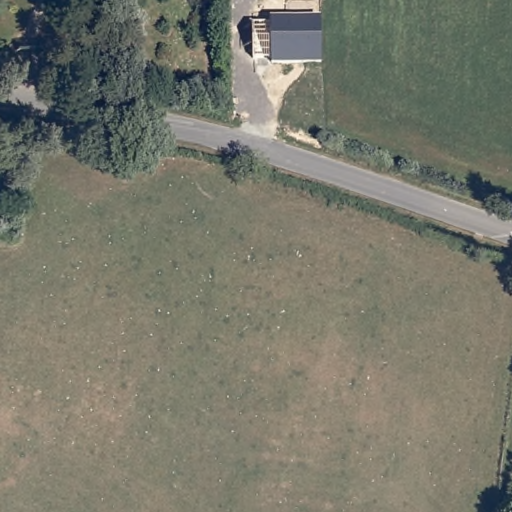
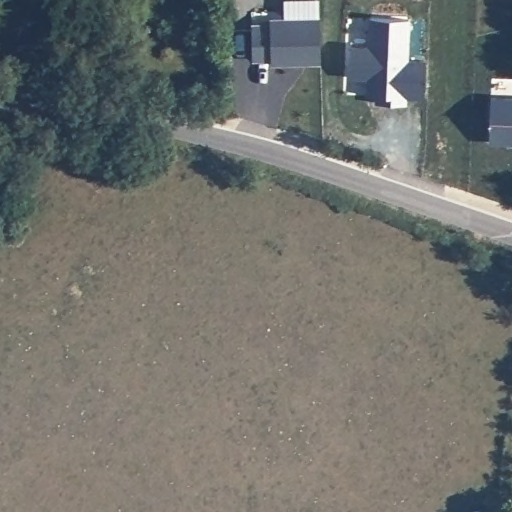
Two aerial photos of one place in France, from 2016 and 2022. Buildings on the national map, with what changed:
new [(409,58),(427,59),(425,98),(406,97),(406,103),(375,101),(374,94),(367,94),(367,78),(350,78),(352,43),(369,44),(371,16),(410,18),(409,58)]
unchanged [(254,25),(272,25),(271,19),(322,19),(320,63),(273,63),(273,58),(254,60),(254,25)]

